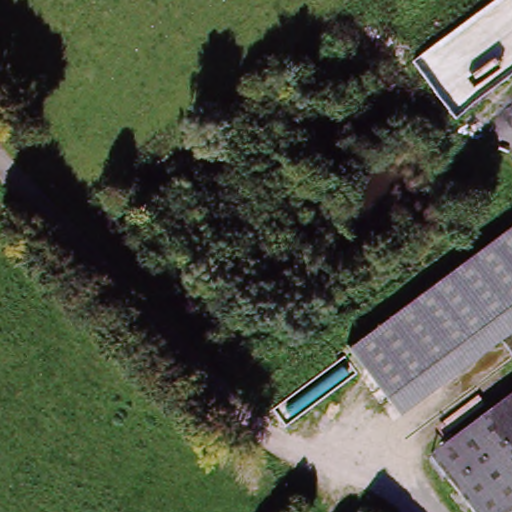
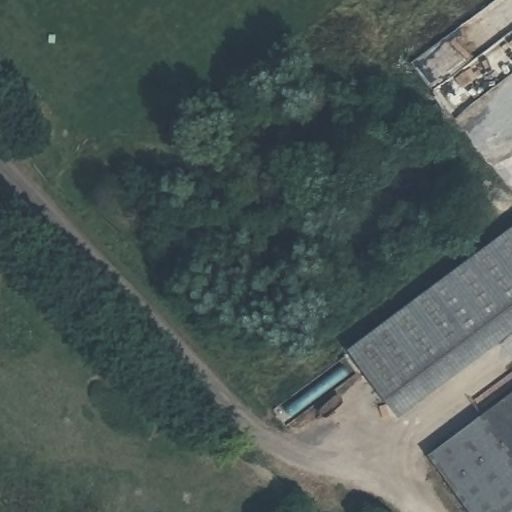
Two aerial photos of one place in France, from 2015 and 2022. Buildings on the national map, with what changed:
unchanged [(352,351),(495,238),(512,224),(512,279),(495,294),(512,313),(512,336),(477,363),(409,418),(352,351)]
unchanged [(495,294),(512,279),(512,313),(495,294)]
unchanged [(434,454),(512,393),(512,512),(478,512),(434,454)]

